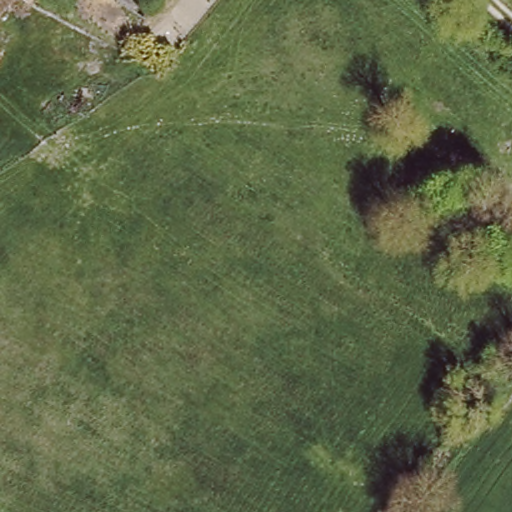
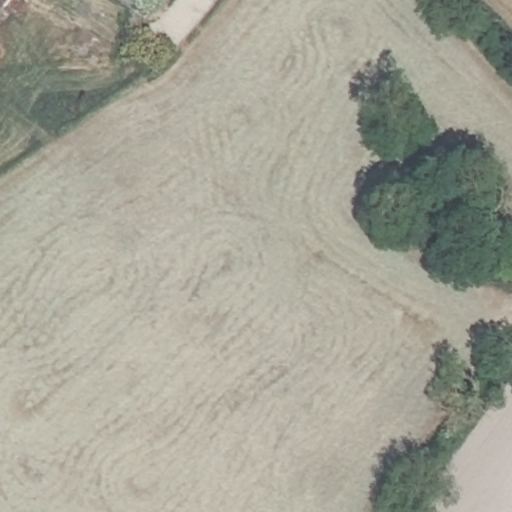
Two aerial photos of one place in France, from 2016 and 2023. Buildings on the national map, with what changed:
unchanged [(140,24),(111,0),(136,0),(150,12),(140,24)]

